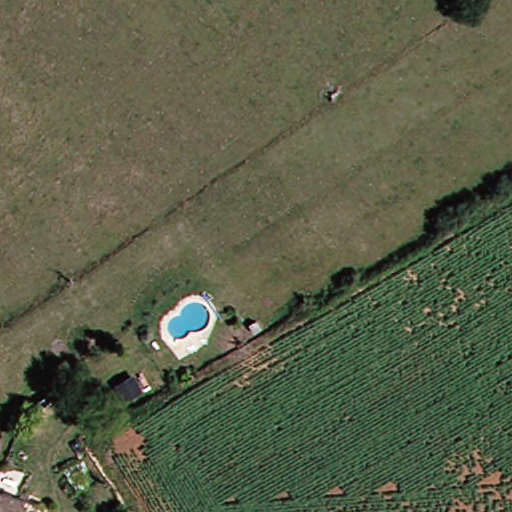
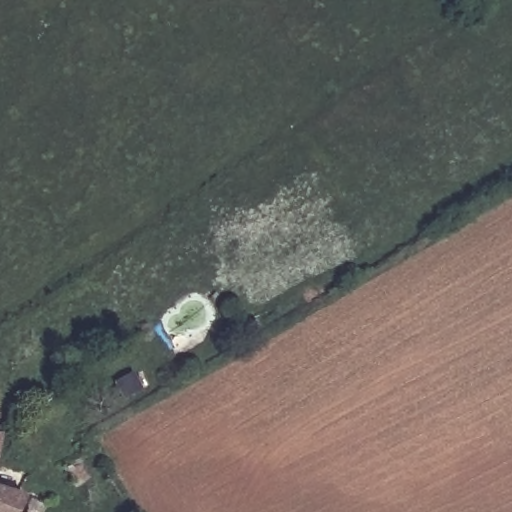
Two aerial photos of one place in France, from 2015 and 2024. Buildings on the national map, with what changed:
unchanged [(125,387),(120,373),(142,367),(146,378),(125,387)]
unchanged [(3,434),(0,448),(0,433),(3,434)]
unchanged [(30,493),(23,512),(0,512),(0,484),(30,493)]

